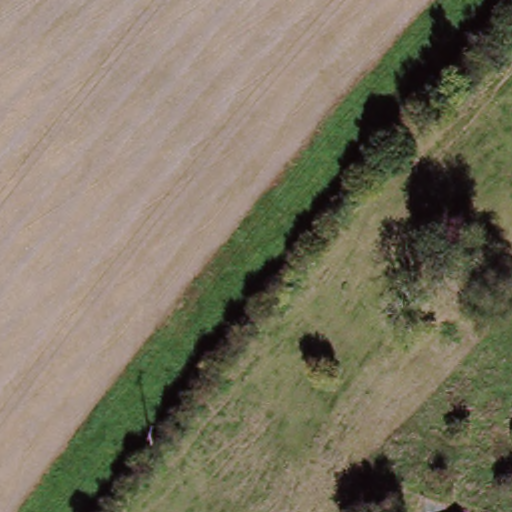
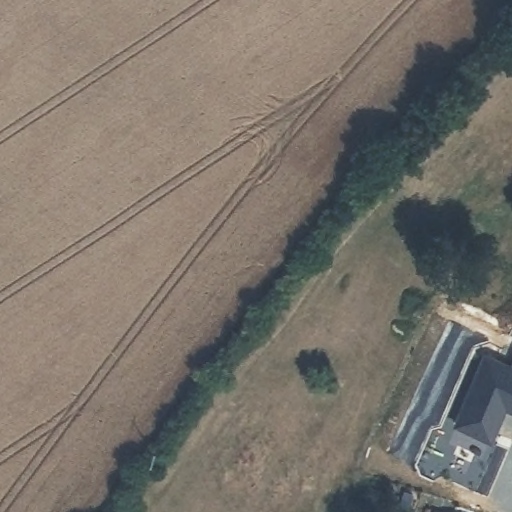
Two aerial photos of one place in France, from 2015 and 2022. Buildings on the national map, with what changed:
new [(465,105),(437,134),(420,116),(449,88),(465,105)]
new [(512,412),(506,409),(491,442),(454,427),(485,354),(512,365),(512,412)]

